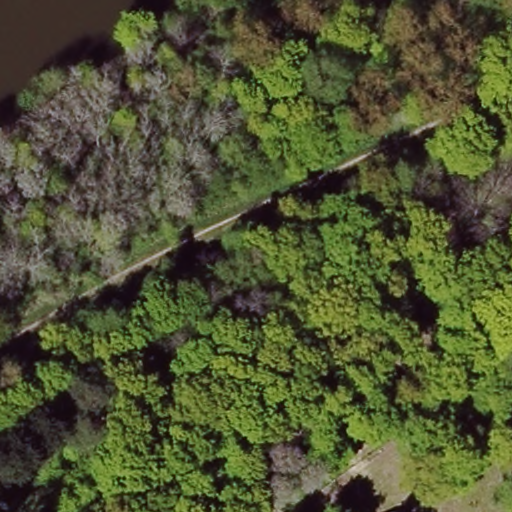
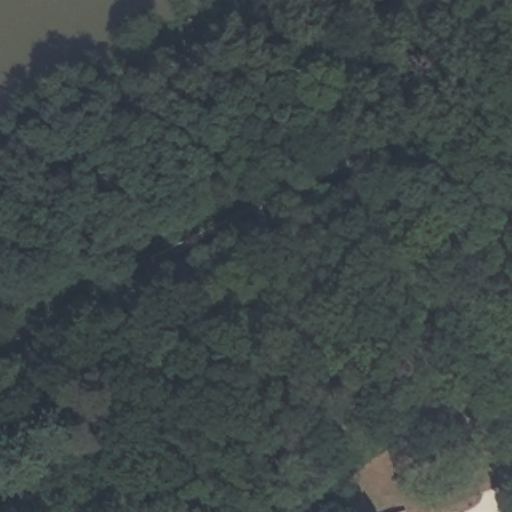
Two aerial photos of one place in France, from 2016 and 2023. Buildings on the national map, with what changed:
unchanged [(391,512),(402,508),(404,512),(391,512)]

